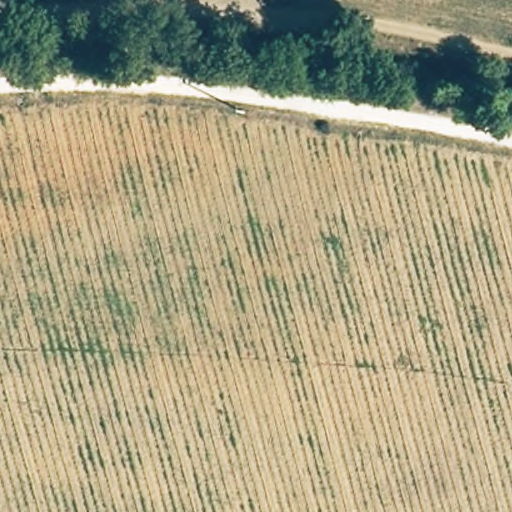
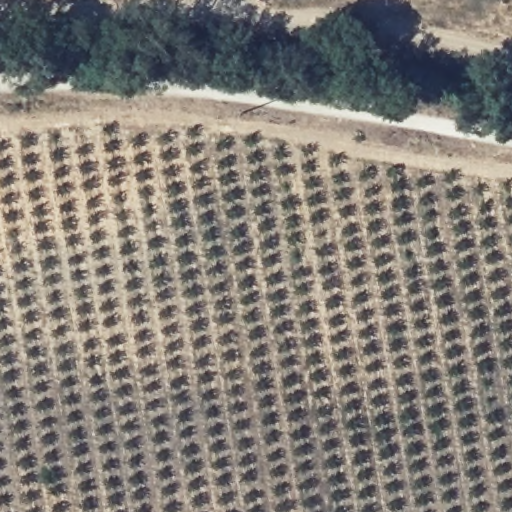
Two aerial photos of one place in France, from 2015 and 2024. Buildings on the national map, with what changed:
[]

